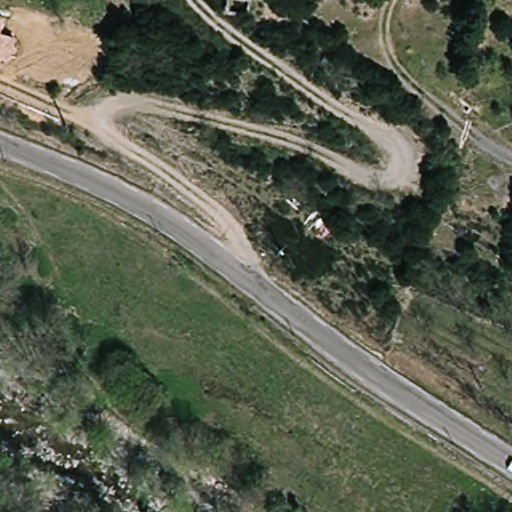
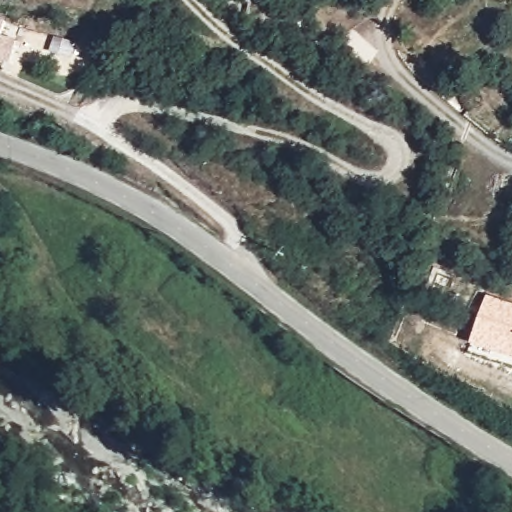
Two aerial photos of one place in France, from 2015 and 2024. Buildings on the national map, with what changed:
unchanged [(4,34),(18,38),(11,66),(0,64),(0,18),(8,20),(4,34)]
new [(487,295),(512,303),(512,357),(471,343),(487,295)]

